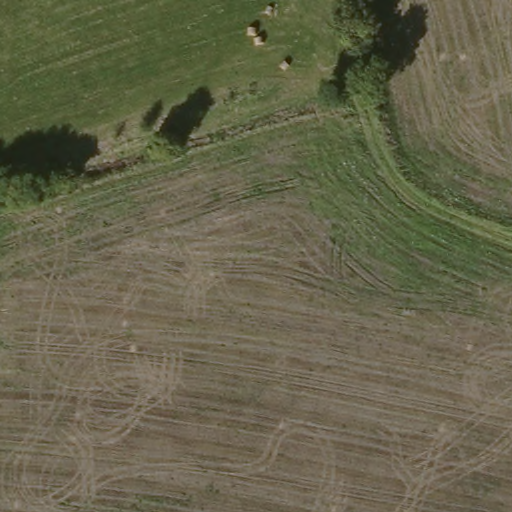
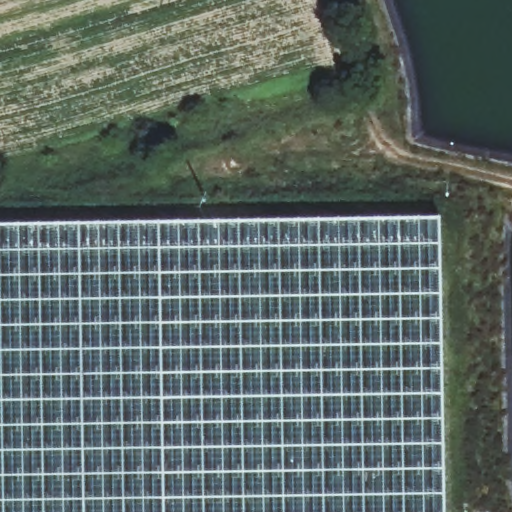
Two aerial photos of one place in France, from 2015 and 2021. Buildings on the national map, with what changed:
new [(0,222),(439,215),(446,512),(0,512),(0,222)]

